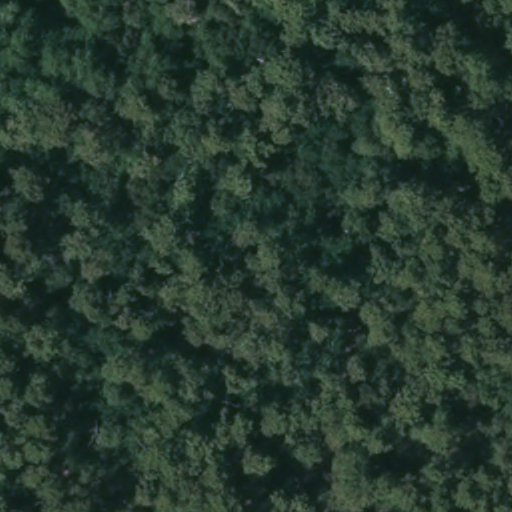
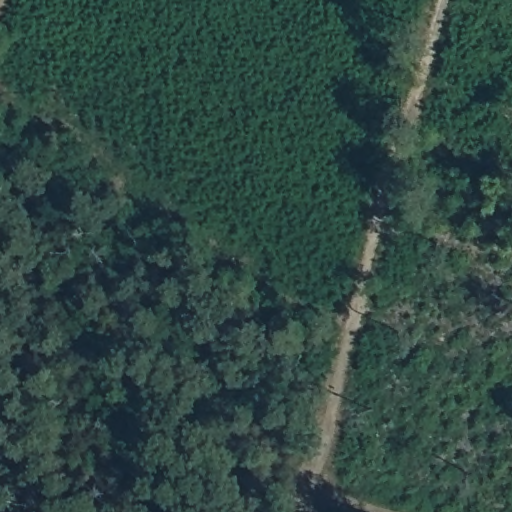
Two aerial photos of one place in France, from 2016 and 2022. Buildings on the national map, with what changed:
[]

